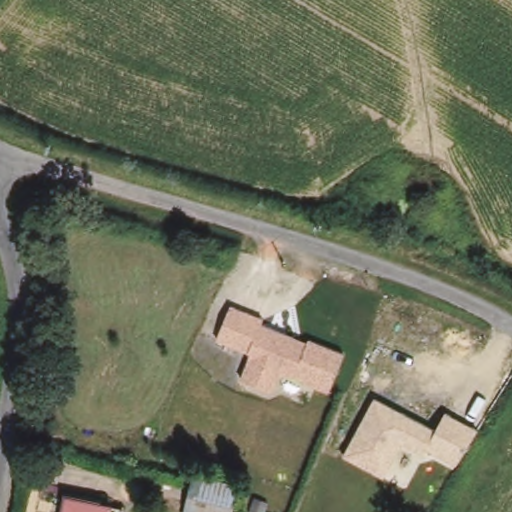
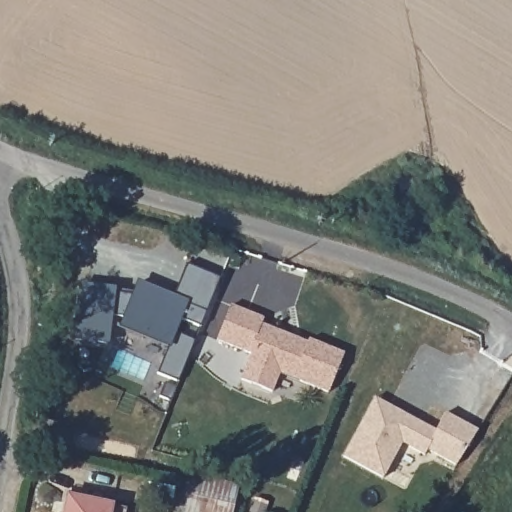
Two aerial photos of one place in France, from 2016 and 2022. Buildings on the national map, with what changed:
new [(179,383),(156,374),(167,346),(118,326),(122,317),(112,316),(109,344),(73,340),(79,284),(115,289),(114,295),(131,296),(137,280),(174,295),(186,264),(221,278),(202,327),(181,319),(175,333),(196,341),(179,383)]
unchanged [(330,393),(281,372),(273,392),(241,378),(251,355),(216,341),(230,306),(265,320),(263,326),(307,342),(309,338),(345,353),(330,393)]
unchanged [(447,414),(475,430),(456,466),(427,450),(424,456),(401,443),(383,480),(344,457),(375,398),(437,430),(447,414)]
unchanged [(238,486),(232,512),(185,512),(194,475),(233,485),(238,486)]
unchanged [(63,512),(67,495),(112,505),(112,507),(122,509),(121,512),(63,512)]

